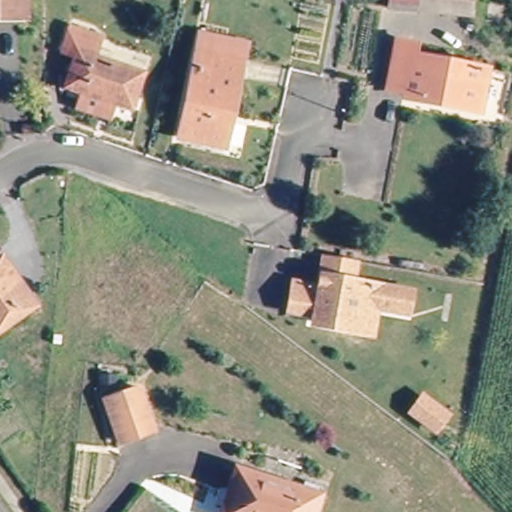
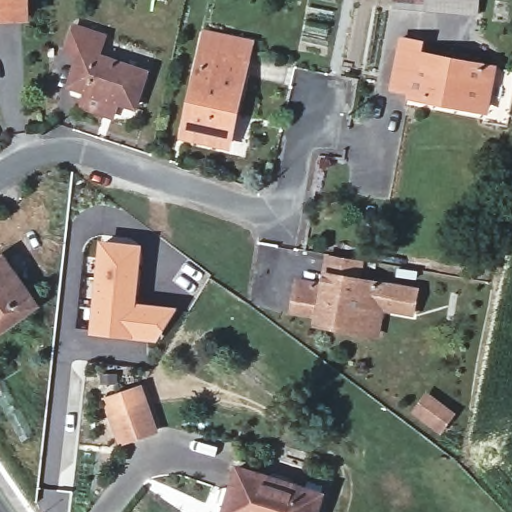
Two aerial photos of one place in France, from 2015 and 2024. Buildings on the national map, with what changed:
unchanged [(25,0),(24,24),(0,24),(0,0),(25,0)]
unchanged [(396,9),(397,0),(435,0),(433,13),(396,9)]
unchanged [(433,13),(435,0),(486,0),(485,16),(433,13)]
unchanged [(79,100),(86,87),(70,79),(82,53),(67,45),(80,23),(115,43),(110,54),(147,74),(131,108),(114,100),(108,115),(79,100)]
unchanged [(403,35),(419,38),(415,62),(487,78),(480,110),(391,93),(403,35)]
unchanged [(196,55),(201,55),(203,41),(250,49),(231,154),(180,145),(196,55)]
new [(89,336),(99,241),(143,245),(137,303),(177,308),(157,341),(89,336)]
unchanged [(0,332),(0,257),(8,250),(42,297),(0,332)]
unchanged [(321,323),(323,314),(297,309),(302,281),(329,285),(330,279),(332,261),(364,266),(361,284),(420,294),(416,318),(386,312),(385,317),(381,340),(320,329),(321,323)]
unchanged [(105,405),(140,391),(156,434),(122,448),(105,405)]
unchanged [(459,430),(446,445),(424,429),(435,413),(459,430)]
unchanged [(242,470),(323,488),(318,512),(230,512),(235,491),(242,470)]

